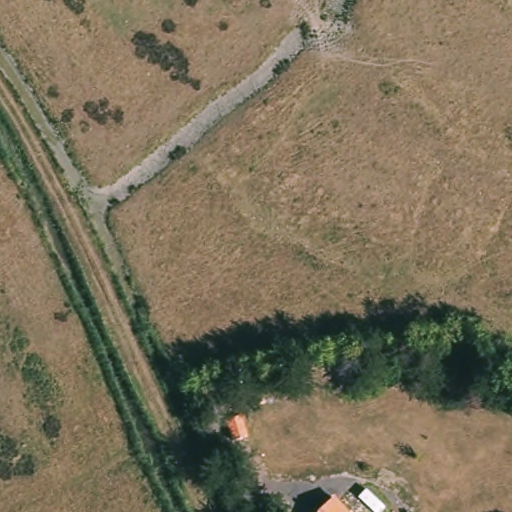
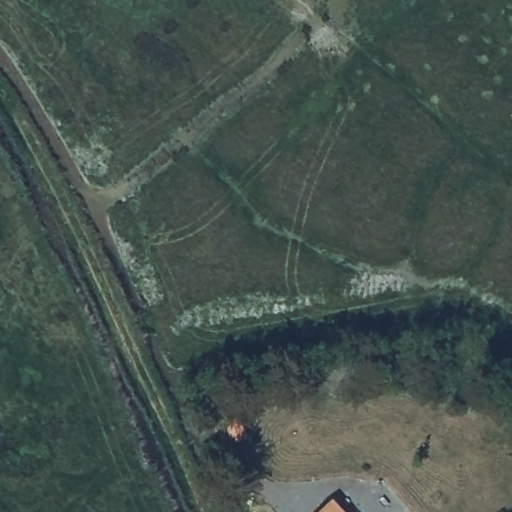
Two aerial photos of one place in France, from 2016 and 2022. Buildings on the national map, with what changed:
unchanged [(333,501),(345,512),(322,512),(333,501)]

